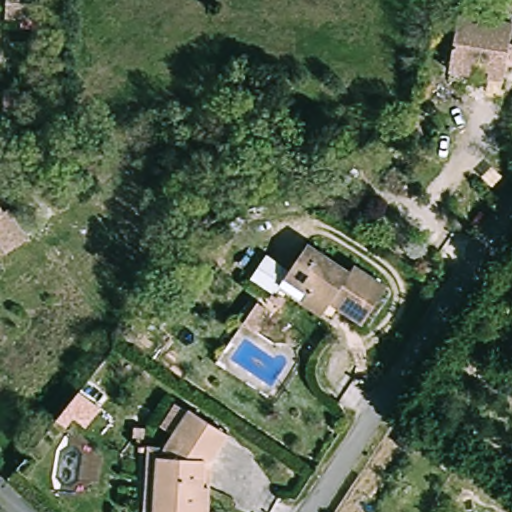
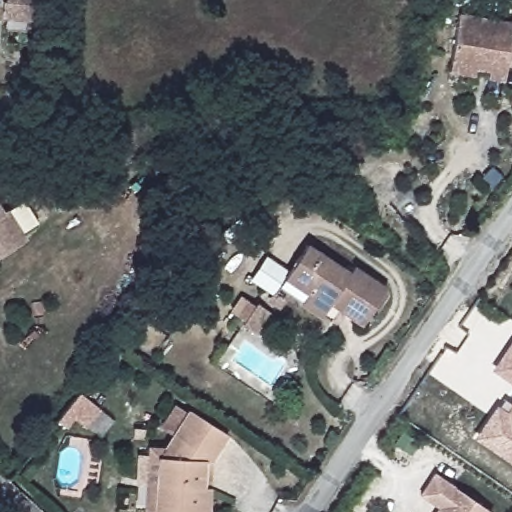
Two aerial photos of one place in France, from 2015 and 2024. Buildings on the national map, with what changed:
unchanged [(11,4),(11,0),(35,0),(35,5),(11,4)]
unchanged [(463,12),(512,21),(512,61),(511,60),(508,76),(492,74),(493,65),(477,62),(477,71),(454,68),(455,59),(463,12)]
unchanged [(8,207),(25,238),(0,254),(0,208),(2,210),(8,207)]
unchanged [(283,277),(309,238),(355,267),(357,263),(396,289),(371,325),(337,305),(333,307),(330,305),(322,318),(300,304),(308,292),(283,277)]
new [(255,332),(243,326),(257,306),(267,312),(255,332)]
demolished [(243,340),(230,334),(245,314),(255,320),(243,340)]
new [(500,367),(512,350),(512,375),(500,367)]
new [(481,434),(500,406),(511,413),(512,412),(512,456),(481,434)]
unchanged [(158,512),(158,511),(165,464),(178,442),(198,410),(232,431),(216,463),(212,484),(207,512),(158,512)]
unchanged [(165,464),(158,511),(143,509),(154,442),(178,442),(165,464)]
new [(420,493),(433,473),(489,512),(434,512),(437,506),(420,493)]

